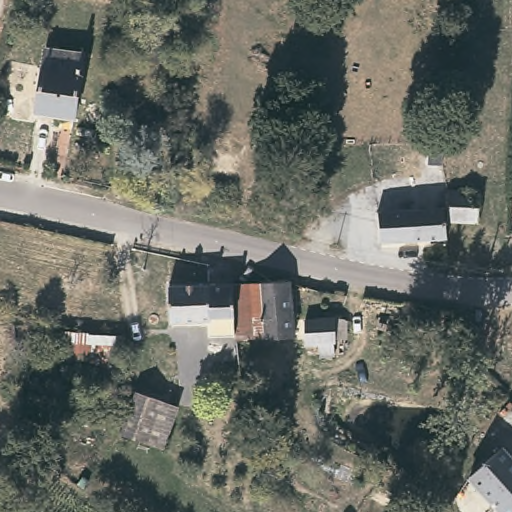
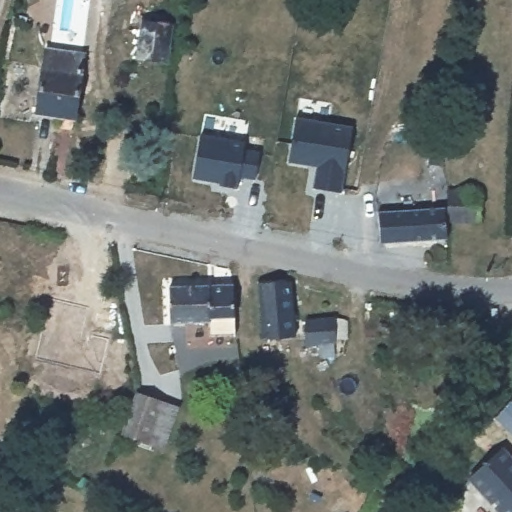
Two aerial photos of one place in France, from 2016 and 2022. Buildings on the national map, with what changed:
unchanged [(134,73),(137,51),(140,34),(141,24),(172,29),(170,38),(167,58),(164,77),(134,73)]
unchanged [(34,115),(46,56),(84,64),(72,122),(34,115)]
demolished [(512,56),(512,95),(503,95),(506,56),(512,56)]
new [(288,162),(297,118),(352,127),(341,195),(313,191),(317,168),(288,162)]
new [(243,149),(259,152),(256,181),(239,179),(238,184),(194,179),(200,136),(244,142),(243,149)]
unchanged [(481,215),(452,215),(452,184),(481,184),(481,215)]
unchanged [(449,215),(450,231),(386,234),(380,234),(381,230),(380,204),(448,202),(449,215)]
unchanged [(290,283),(296,343),(264,347),(258,284),(286,282),(290,283)]
unchanged [(236,295),(237,337),(212,339),(212,323),(172,325),(171,288),(235,285),(236,295)]
unchanged [(348,325),(350,344),(340,345),(341,348),(336,349),(337,362),(323,363),(321,350),(306,351),(304,328),(335,324),(348,325)]
unchanged [(468,329),(471,330),(473,332),(472,347),(463,345),(460,343),(459,341),(457,339),(458,335),(459,333),(461,330),(464,329),(466,329),(468,329)]
demolished [(125,337),(124,373),(62,368),(65,333),(125,337)]
unchanged [(180,409),(165,453),(119,438),(136,396),(180,409)]
unchanged [(511,467),(512,467),(512,512),(502,512),(482,494),(473,486),(473,485),(491,467),(500,456),(511,467)]

